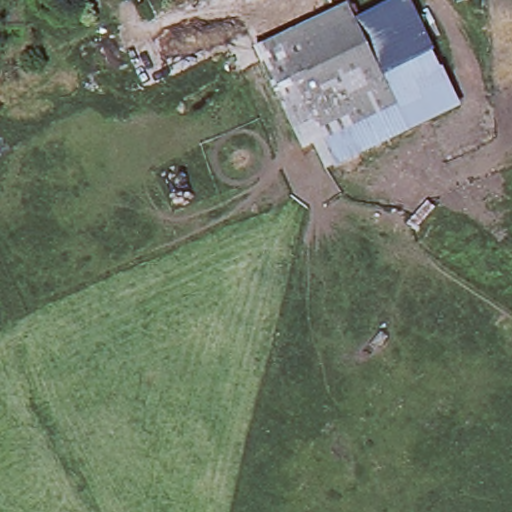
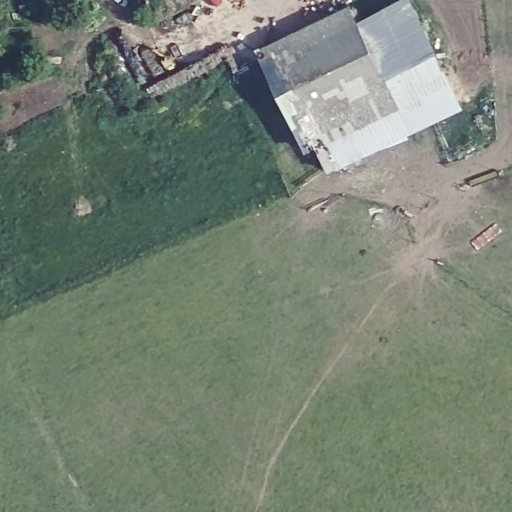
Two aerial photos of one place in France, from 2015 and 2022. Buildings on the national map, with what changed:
unchanged [(354,17),(359,14),(393,0),(409,0),(460,113),(325,173),(314,151),(329,144),(286,47),(354,17)]
unchanged [(314,151),(303,155),(260,59),(286,47),(329,144),(314,151)]

